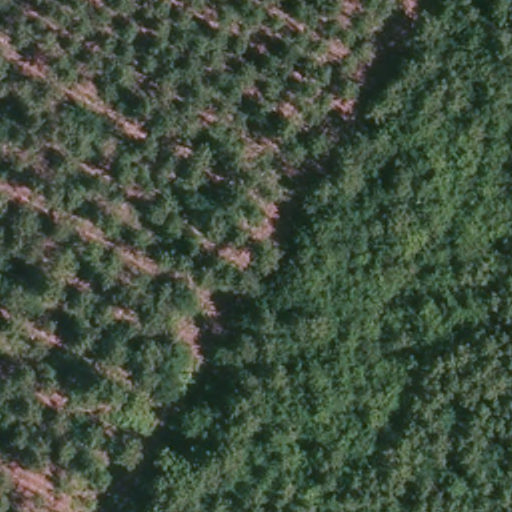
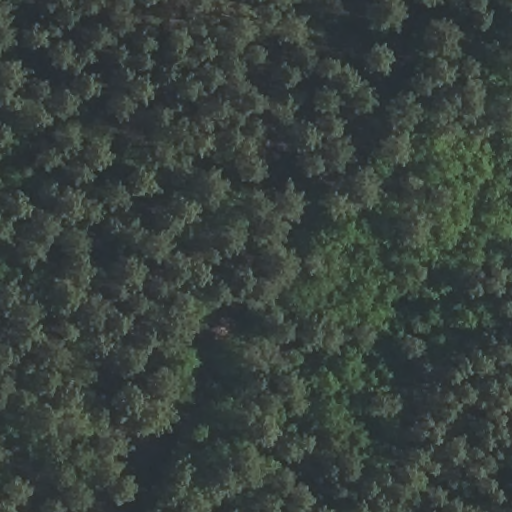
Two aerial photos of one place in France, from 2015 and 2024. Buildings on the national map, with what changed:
[]

